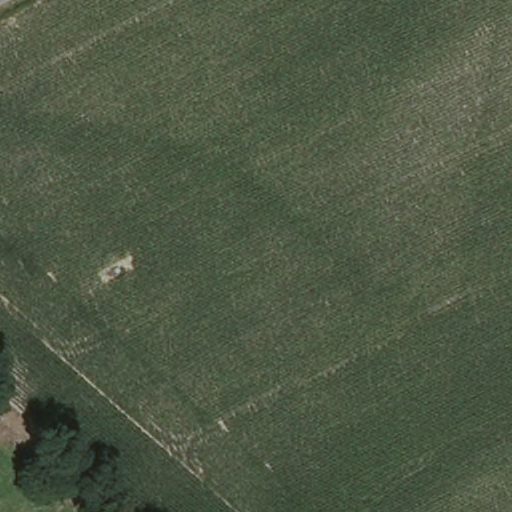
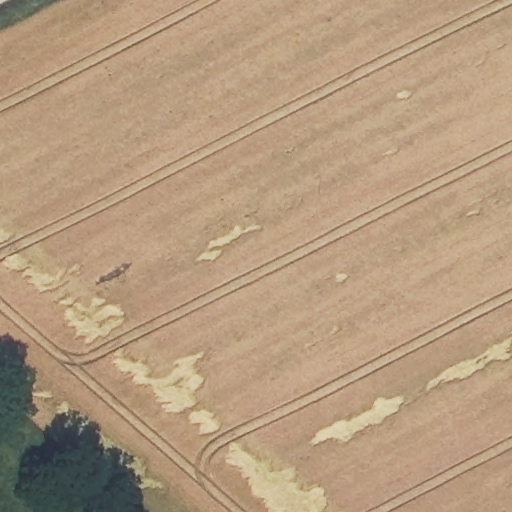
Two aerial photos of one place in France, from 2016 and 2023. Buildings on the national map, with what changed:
[]

